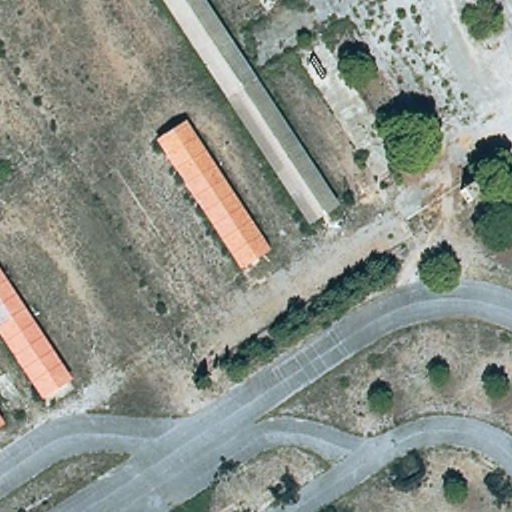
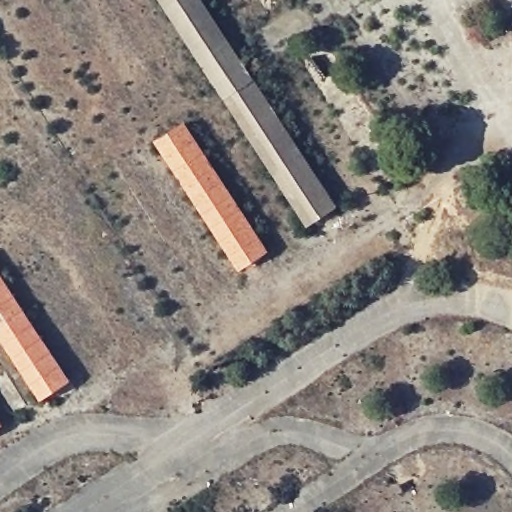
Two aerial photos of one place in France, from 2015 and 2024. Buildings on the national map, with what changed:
unchanged [(299,220),(160,0),(211,0),(335,192),(299,220)]
unchanged [(183,111),(266,239),(241,260),(152,126),(183,111)]
unchanged [(72,368),(42,392),(0,331),(0,264),(72,368)]
unchanged [(3,415),(0,418),(0,410),(3,415)]

